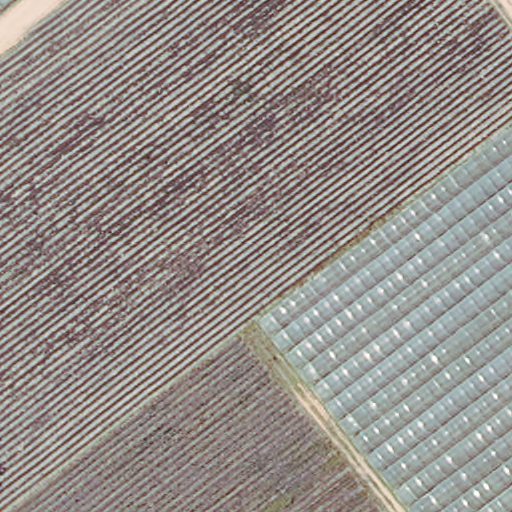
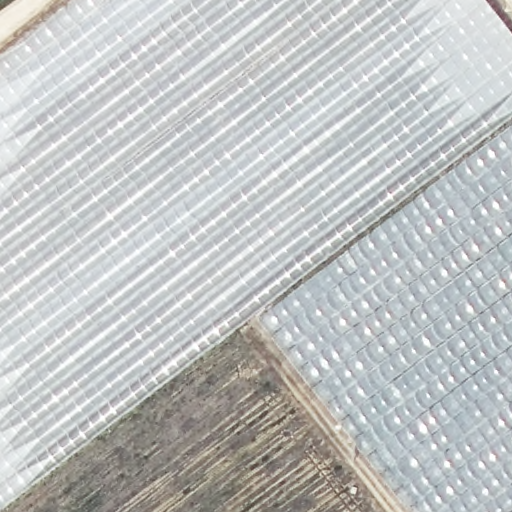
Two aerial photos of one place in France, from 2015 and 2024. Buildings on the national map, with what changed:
demolished [(12,60),(94,0),(487,0),(512,30),(512,114),(212,340),(0,502),(0,69),(12,60)]
unchanged [(255,312),(512,114),(512,512),(412,512),(255,312)]

